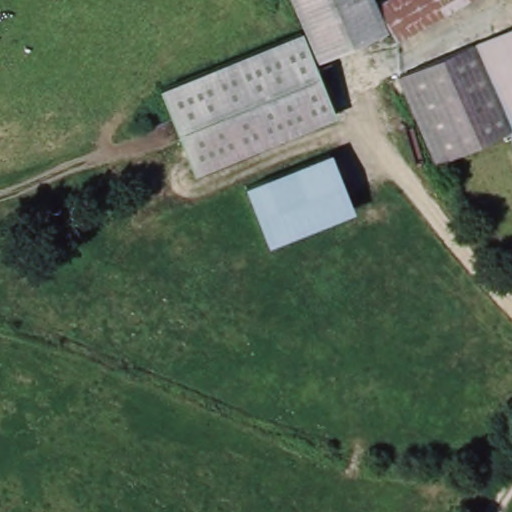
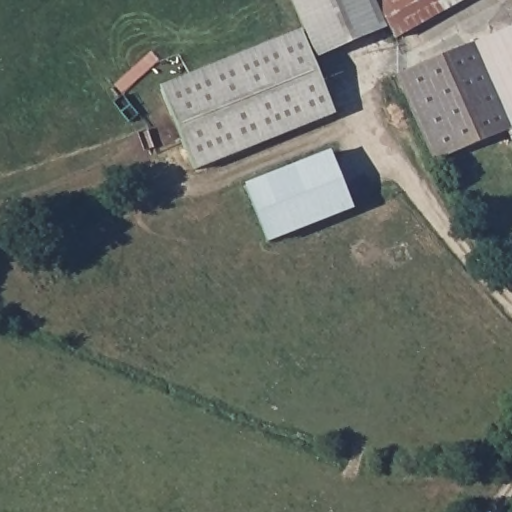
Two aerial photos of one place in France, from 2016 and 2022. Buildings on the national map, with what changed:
unchanged [(394,21),(313,57),(335,116),(194,170),(160,83),(302,29),(290,0),(381,0),(382,2),(394,21)]
unchanged [(462,0),(403,36),(394,21),(382,2),(385,0),(462,0)]
unchanged [(512,28),(512,127),(476,44),(512,28)]
unchanged [(410,93),(399,98),(392,81),(403,77),(402,76),(476,44),(512,127),(512,131),(439,161),(434,149),(410,93)]
unchanged [(330,153),(352,209),(268,242),(245,186),(330,153)]

